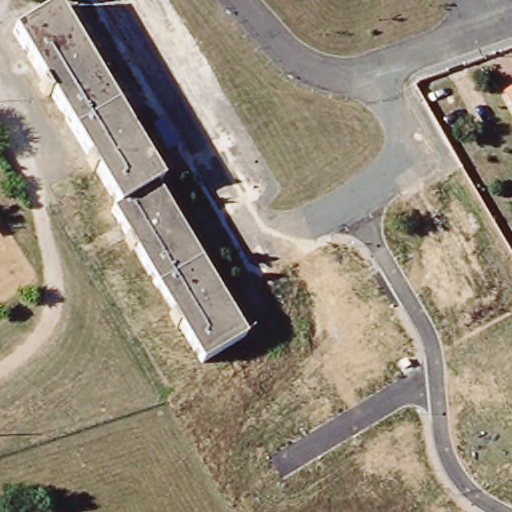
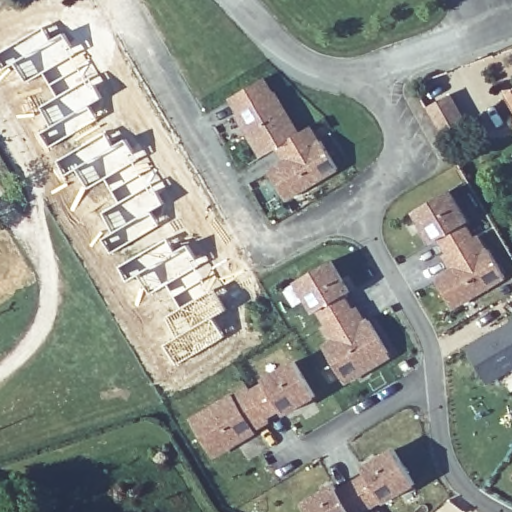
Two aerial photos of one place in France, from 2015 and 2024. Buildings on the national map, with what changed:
demolished [(118,218),(11,36),(57,9),(159,188),(156,190),(246,343),(202,369),(115,219),(118,218)]
new [(267,169),(285,160),(278,147),(262,156),(229,100),(267,78),(276,92),(277,91),(302,133),(312,126),(340,170),(288,201),(267,169)]
unchanged [(512,91),(512,110),(503,97),(512,91)]
new [(452,94),(467,120),(445,132),(431,106),(452,94)]
new [(436,277),(450,269),(442,255),(445,253),(437,239),(432,242),(413,212),(452,190),(470,221),(467,222),(476,238),(480,235),(507,280),(455,308),(436,277)]
new [(322,344),(328,341),(322,328),(325,326),(316,311),(313,313),(297,281),(334,260),(351,290),(347,293),(356,309),(359,307),(366,319),(368,318),(392,357),(347,384),(322,344)]
new [(490,384),(467,347),(512,320),(512,371),(490,384)]
new [(194,417),(233,393),(234,395),(250,386),(251,390),(264,378),(295,360),(318,396),(286,414),(285,411),(268,420),(270,423),(256,432),(258,434),(216,458),(194,417)]
new [(395,448),(416,485),(372,512),(309,512),(303,502),(395,448)]

